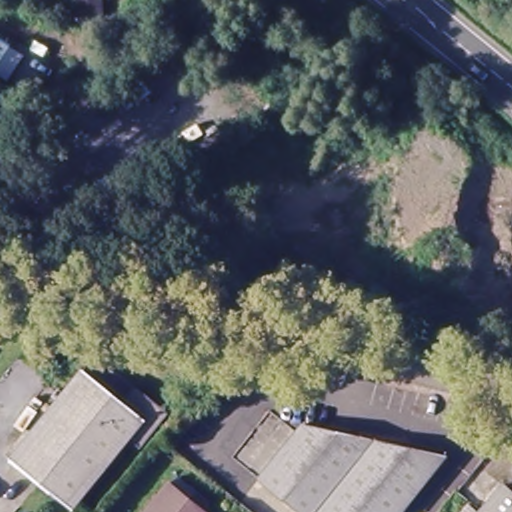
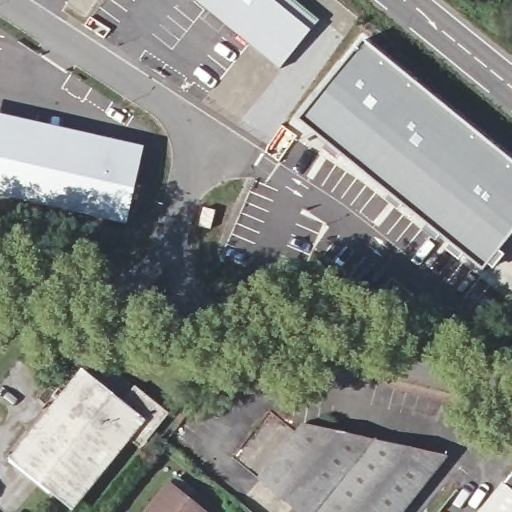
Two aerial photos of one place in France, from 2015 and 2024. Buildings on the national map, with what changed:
new [(319,18),(280,66),(235,30),(197,0),(296,0),(319,18)]
new [(364,38),(512,159),(512,236),(499,251),(504,255),(493,270),(488,266),(484,269),(452,245),(358,164),(299,118),(364,38)]
new [(127,224),(0,195),(0,115),(144,147),(127,224)]
new [(205,208),(216,210),(211,228),(200,226),(205,208)]
unchanged [(74,508),(12,458),(84,369),(124,400),(136,384),(171,412),(154,433),(142,446),(135,441),(132,438),(74,508)]
unchanged [(301,512),(263,482),(308,425),(452,457),(408,512),(301,512)]
unchanged [(208,512),(150,512),(173,484),(208,512)]
unchanged [(512,493),(512,512),(478,512),(502,484),(512,493)]
unchanged [(474,512),(461,512),(466,505),(474,512)]

